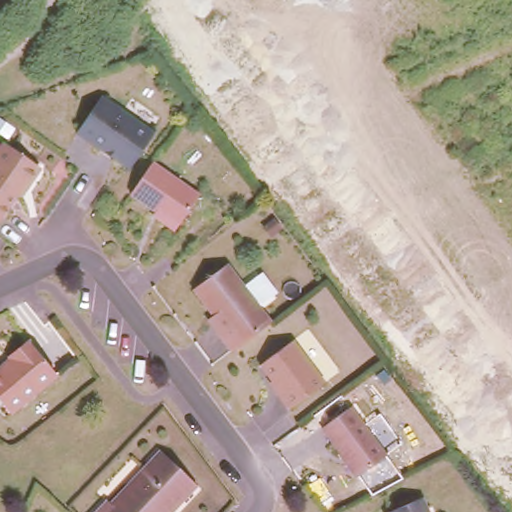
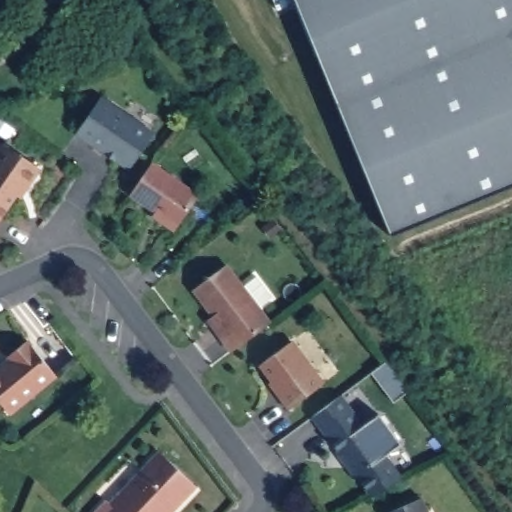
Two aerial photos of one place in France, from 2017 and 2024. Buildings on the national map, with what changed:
new [(391,236),(294,0),(512,0),(512,186),(391,236)]
unchanged [(103,150),(75,132),(100,95),(153,131),(132,163),(129,167),(103,150)]
unchanged [(0,218),(0,148),(2,145),(35,168),(36,174),(28,186),(19,199),(15,196),(0,218)]
unchanged [(198,198),(174,233),(158,223),(161,219),(130,197),(151,166),(198,198)]
unchanged [(211,316),(191,290),(223,265),(268,323),(231,352),(219,338),(206,320),(211,316)]
unchanged [(322,383),(288,410),(278,397),(280,395),(258,366),(290,341),(322,383)]
unchanged [(0,370),(11,362),(9,358),(29,343),(56,379),(8,416),(0,405),(0,370)]
unchanged [(384,454),(356,475),(320,428),(348,406),(384,454)]
unchanged [(160,453),(196,488),(181,505),(174,512),(97,512),(106,503),(109,507),(160,453)]
unchanged [(422,512),(391,512),(414,498),(422,512)]

